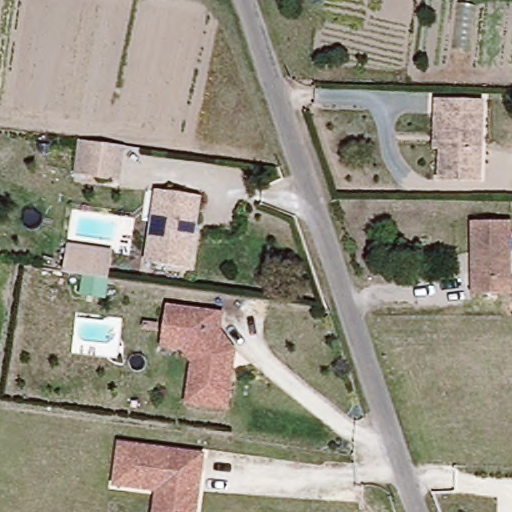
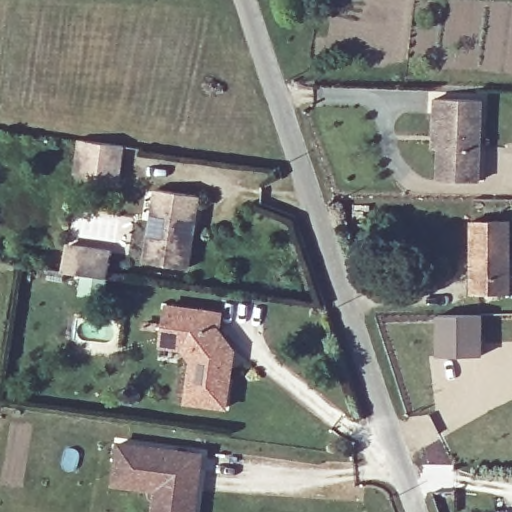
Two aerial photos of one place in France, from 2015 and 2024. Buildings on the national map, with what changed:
unchanged [(475,182),(441,179),(441,115),(433,114),(435,101),(480,102),(475,182)]
unchanged [(117,181),(79,176),(84,141),(123,147),(117,181)]
unchanged [(127,150),(184,158),(180,182),(123,176),(127,150)]
unchanged [(179,267),(139,261),(149,191),(190,195),(179,267)]
unchanged [(504,295),(470,293),(472,224),(507,224),(504,295)]
unchanged [(80,275),(61,271),(66,241),(112,249),(105,297),(79,292),(80,275)]
unchanged [(229,407),(189,401),(195,360),(186,347),(166,344),(172,305),(225,312),(222,328),(233,343),(237,350),(234,373),(229,407)]
new [(485,357),(462,357),(442,357),(443,315),(464,316),(485,317),(485,357)]
unchanged [(159,493),(116,487),(122,447),(205,458),(197,512),(156,512),(159,493)]

